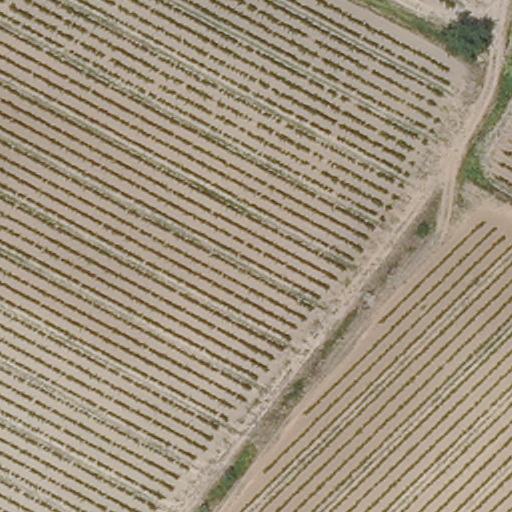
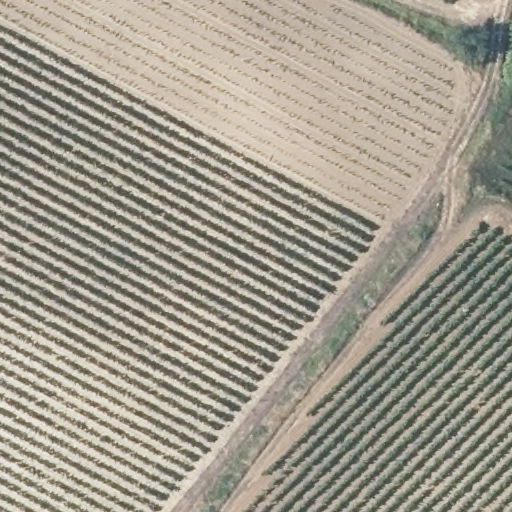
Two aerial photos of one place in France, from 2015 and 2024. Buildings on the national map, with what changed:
unchanged [(500,21),(492,36),(471,27),(483,7),(500,21)]

